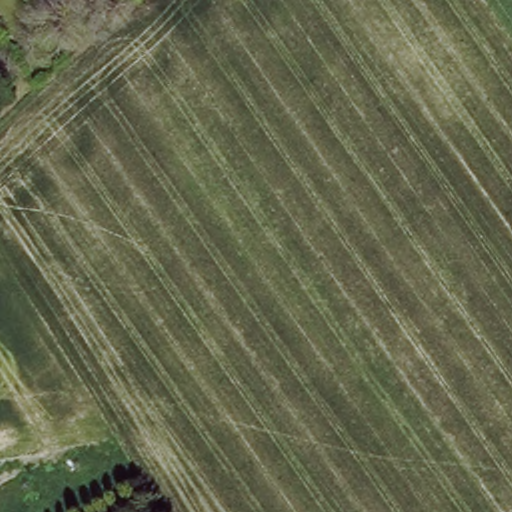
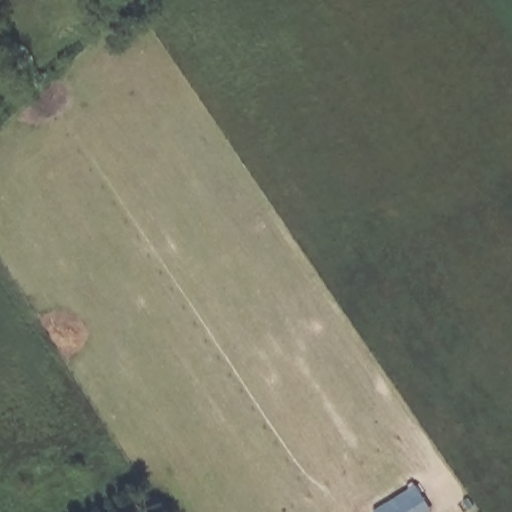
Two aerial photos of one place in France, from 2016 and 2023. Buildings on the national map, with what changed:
new [(418,487),(426,501),(409,512),(379,512),(418,487)]

